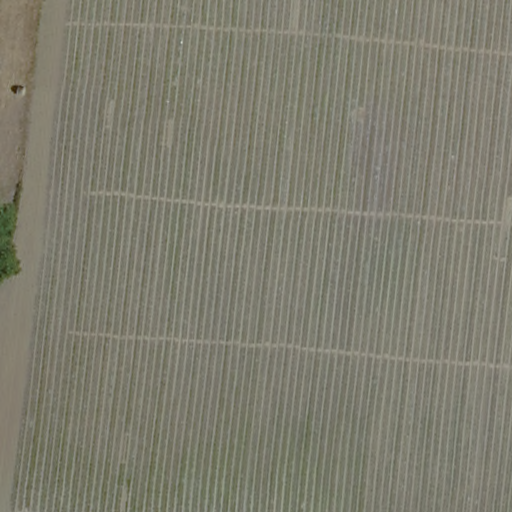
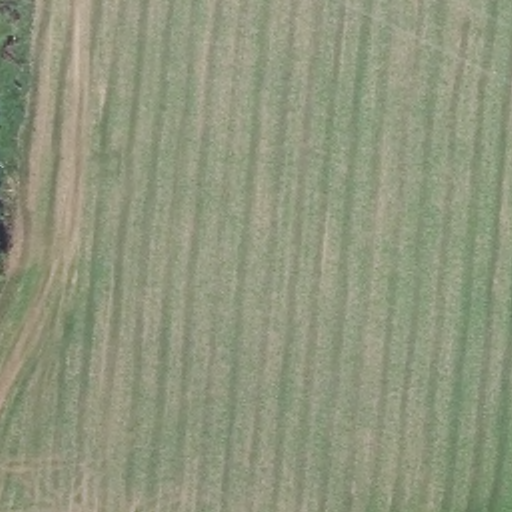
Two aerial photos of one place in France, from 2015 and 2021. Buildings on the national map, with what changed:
[]

